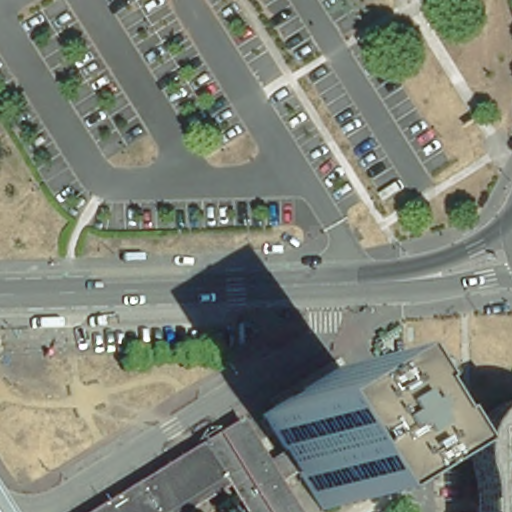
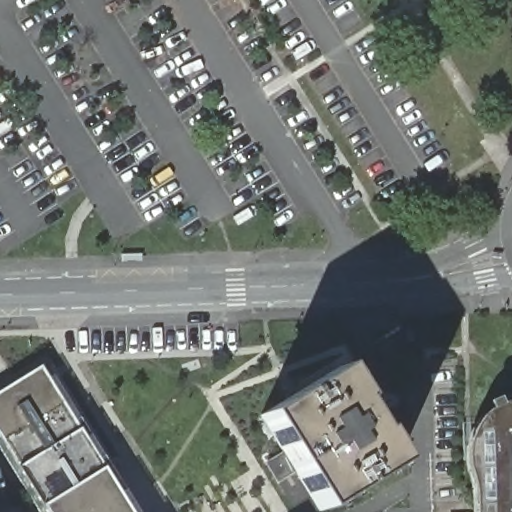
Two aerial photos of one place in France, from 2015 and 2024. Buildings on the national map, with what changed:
new [(0,438),(0,391),(40,366),(102,466),(41,505),(0,438)]
unchanged [(282,452),(260,416),(274,407),(287,399),(340,367),(360,401),(357,403),(362,412),(375,432),(378,430),(397,462),(320,510),(318,511),(295,472),(278,482),(266,462),(282,452)]
unchanged [(484,464),(485,448),(489,432),(497,422),(507,414),(512,412),(512,512),(484,512),(485,480),(484,464)]
demolished [(297,512),(265,512),(216,433),(239,419),(266,462),(278,482),(297,512)]
demolished [(200,443),(213,464),(222,477),(166,512),(88,512),(200,443)]
new [(41,505),(102,466),(118,491),(131,512),(46,512),(41,505)]
demolished [(227,486),(243,512),(185,512),(227,486)]

